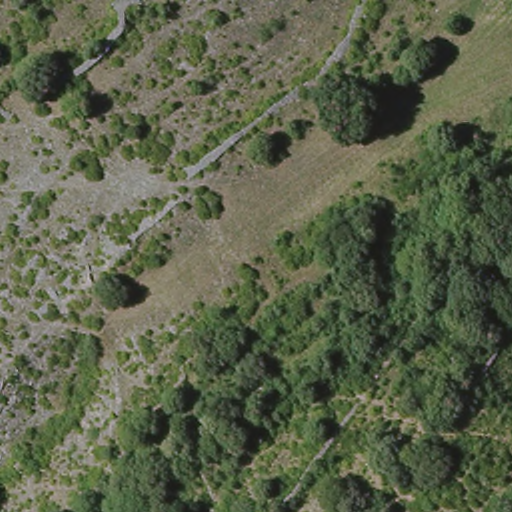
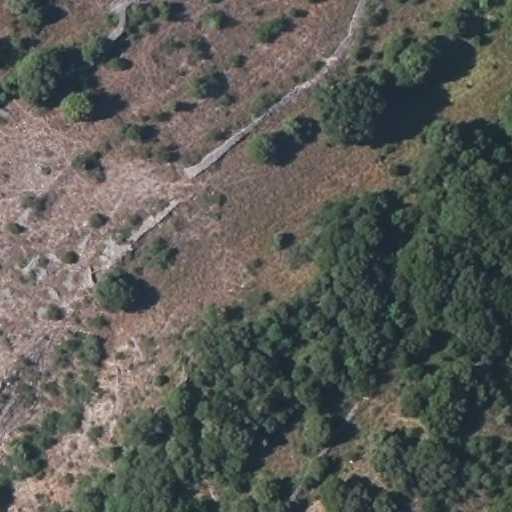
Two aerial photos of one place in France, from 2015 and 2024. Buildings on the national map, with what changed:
[]

